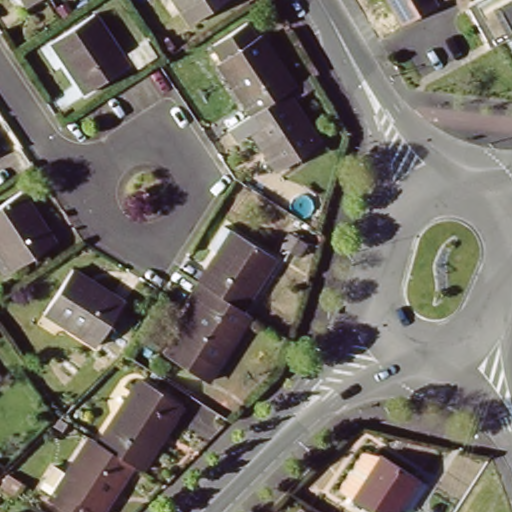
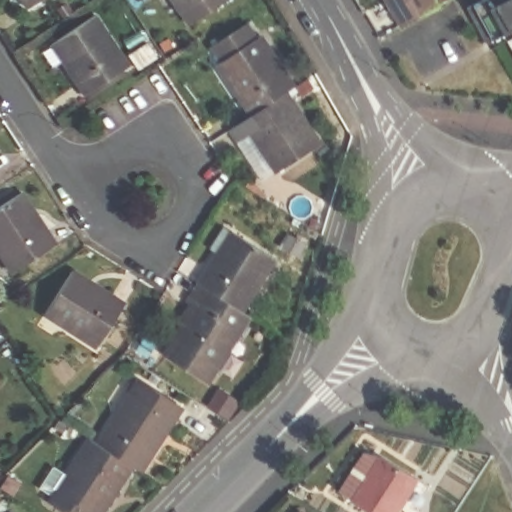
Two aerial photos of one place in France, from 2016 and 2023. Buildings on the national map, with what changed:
unchanged [(26,0),(40,0),(30,6),(26,0)]
unchanged [(176,14),(178,12),(171,0),(227,0),(185,27),(176,14)]
unchanged [(389,0),(434,0),(437,4),(403,21),(389,0)]
unchanged [(466,1),(469,0),(512,0),(512,53),(502,31),(484,40),(466,1)]
unchanged [(82,95),(49,44),(90,16),(123,68),(82,95)]
unchanged [(216,65),(220,62),(210,45),(245,24),(255,41),(258,39),(292,89),(283,96),(249,118),(216,65)]
unchanged [(283,96),(316,148),(274,175),(240,124),(249,118),(283,96)]
unchanged [(52,246),(12,273),(0,255),(0,208),(19,195),(52,246)]
unchanged [(224,231),(267,257),(235,309),(192,283),(224,231)]
unchanged [(304,243),(297,255),(277,243),(285,231),(304,243)]
unchanged [(95,345),(45,311),(73,270),(123,304),(95,345)]
unchanged [(243,313),(202,380),(158,354),(188,304),(180,299),(190,282),(192,283),(235,309),(243,313)]
unchanged [(125,391),(117,387),(120,381),(128,386),(132,380),(175,405),(137,469),(127,464),(94,444),(125,391)]
unchanged [(127,464),(99,512),(63,512),(45,502),(84,438),(94,444),(127,464)]
unchanged [(365,452),(416,483),(398,512),(366,512),(338,495),(365,452)]
unchanged [(295,510),(300,512),(294,512),(295,510)]

